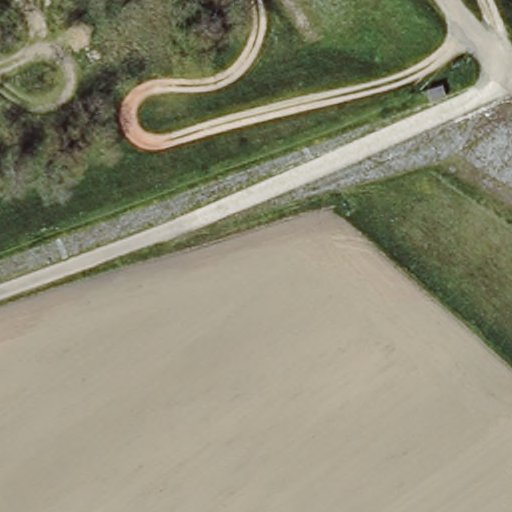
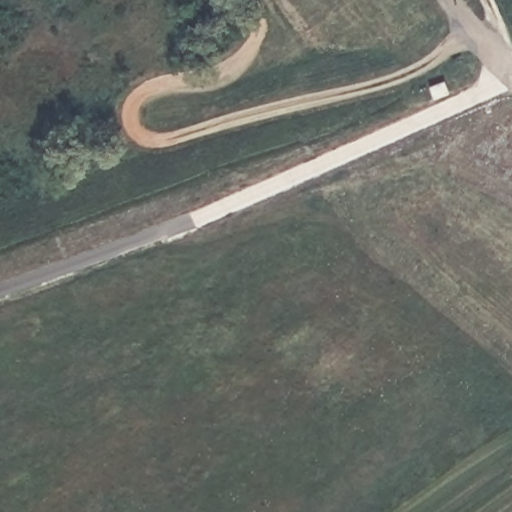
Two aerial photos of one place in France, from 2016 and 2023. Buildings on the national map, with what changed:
unchanged [(451,93),(433,98),(428,77),(445,73),(451,93)]

